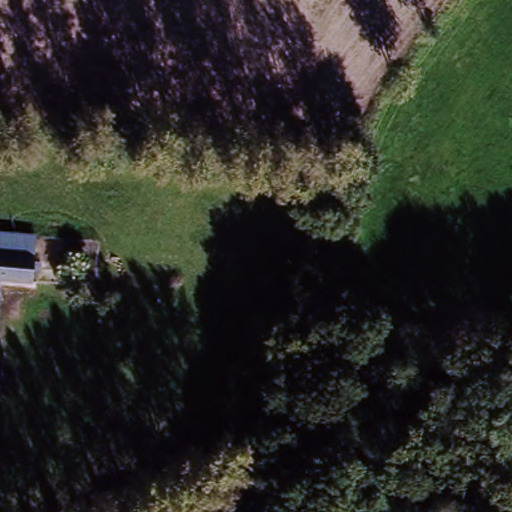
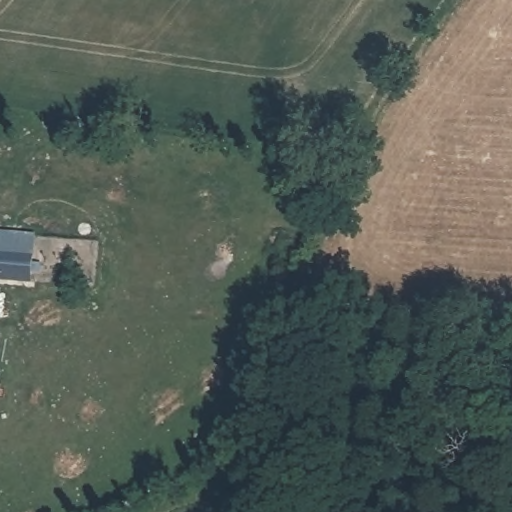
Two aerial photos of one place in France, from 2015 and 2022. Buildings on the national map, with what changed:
unchanged [(30,250),(29,277),(0,277),(0,248),(30,250)]

